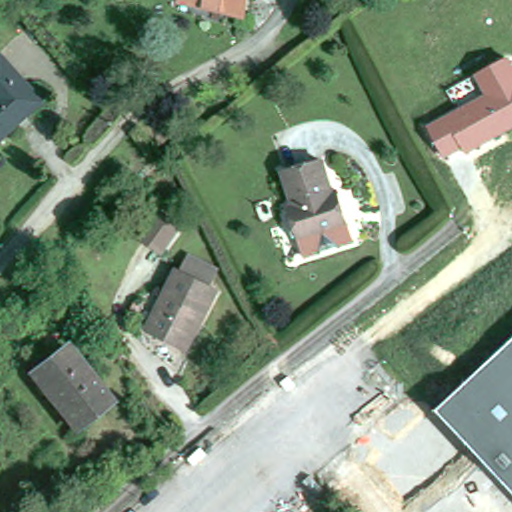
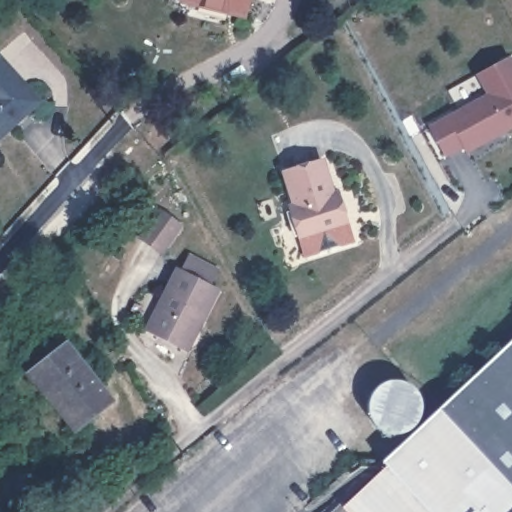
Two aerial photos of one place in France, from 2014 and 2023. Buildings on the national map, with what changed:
unchanged [(190,0),(252,0),(248,14),(190,0)]
unchanged [(512,132),(467,155),(464,150),(445,158),(430,125),(485,94),(477,74),(511,57),(512,59),(512,132)]
unchanged [(40,101),(0,137),(0,58),(40,101)]
unchanged [(322,159),(333,193),(337,192),(347,224),(300,239),(290,206),(295,204),(283,171),(322,159)]
unchanged [(140,236),(162,204),(187,220),(163,251),(140,236)]
unchanged [(200,322),(198,321),(184,348),(147,330),(177,268),(183,271),(190,255),(216,269),(209,284),(217,288),(200,322)]
unchanged [(512,338),(512,489),(437,408),(512,338)]
unchanged [(65,347),(108,401),(76,425),(55,399),(51,402),(42,391),(45,387),(33,372),(65,347)]
new [(342,509),(387,467),(382,461),(437,408),(512,489),(512,512),(345,512),(342,509)]

